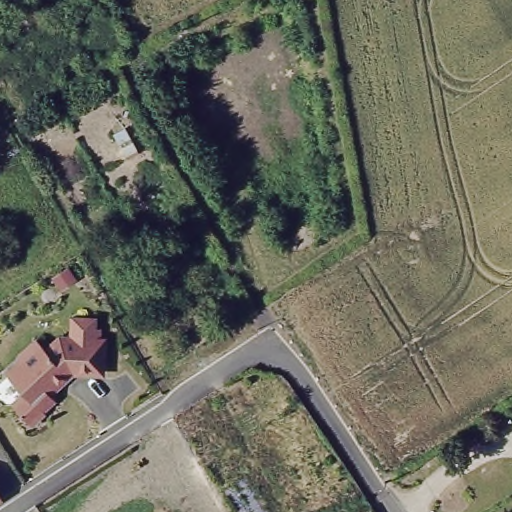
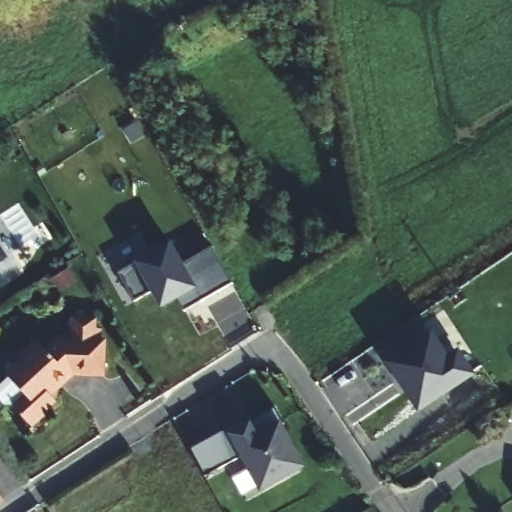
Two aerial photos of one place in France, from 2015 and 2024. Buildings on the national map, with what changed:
new [(164,250),(173,244),(185,264),(212,249),(231,283),(185,310),(179,300),(161,310),(143,280),(171,263),(164,250)]
unchanged [(23,363),(18,357),(37,340),(48,352),(63,340),(74,340),(75,317),(99,318),(98,342),(106,342),(104,372),(72,371),(48,392),(55,399),(43,411),(45,413),(35,422),(29,422),(13,406),(25,394),(9,377),(23,363)]
new [(407,352),(431,336),(446,361),(457,353),(472,375),(419,407),(390,363),(385,357),(402,347),(407,352)]
new [(246,420),(248,422),(252,421),(275,408),(283,422),(306,467),(260,492),(241,457),(206,475),(192,450),(246,420)]
unchanged [(0,503),(0,494),(4,500),(0,503)]

